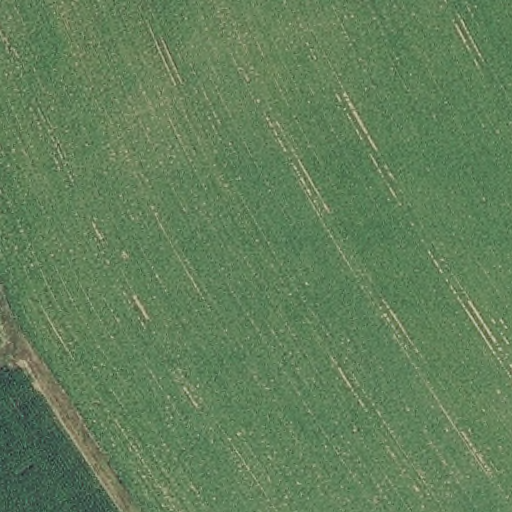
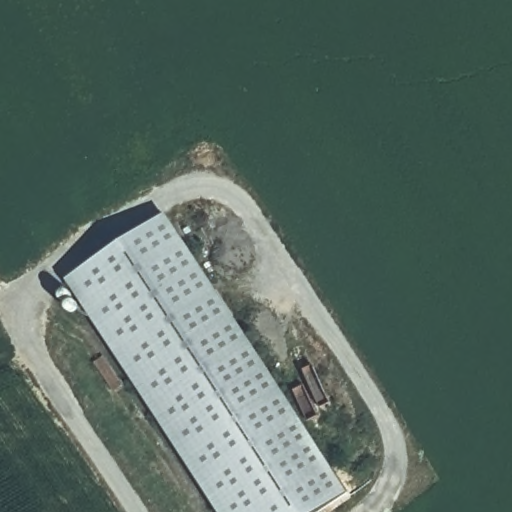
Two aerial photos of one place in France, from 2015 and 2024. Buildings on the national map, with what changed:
new [(347,492),(317,512),(214,512),(64,278),(163,210),(347,492)]

